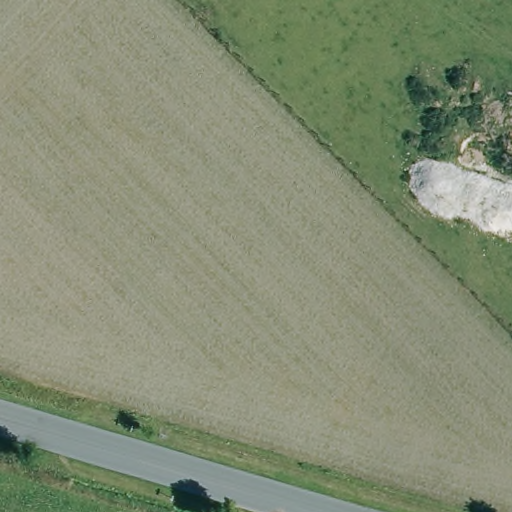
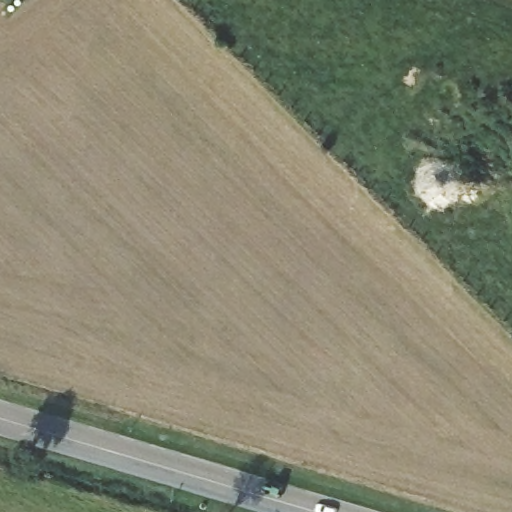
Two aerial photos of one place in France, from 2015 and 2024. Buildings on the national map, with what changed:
[]

